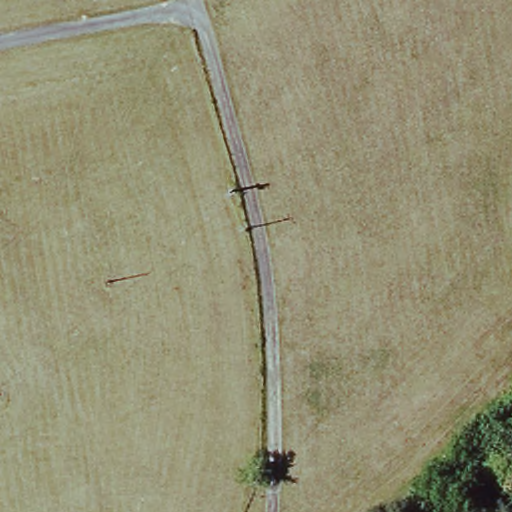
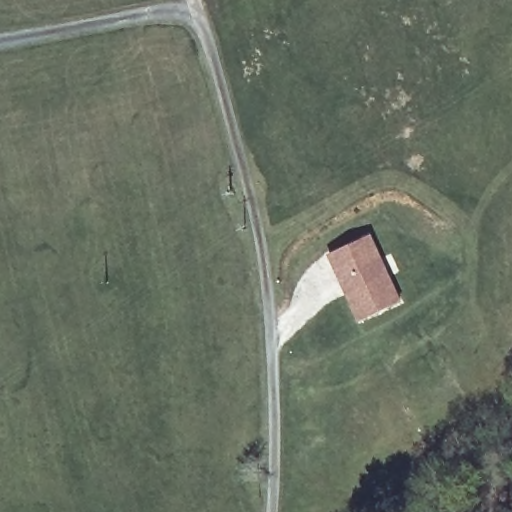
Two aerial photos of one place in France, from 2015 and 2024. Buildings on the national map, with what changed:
new [(328,255),(372,233),(403,300),(360,321),(328,255)]

